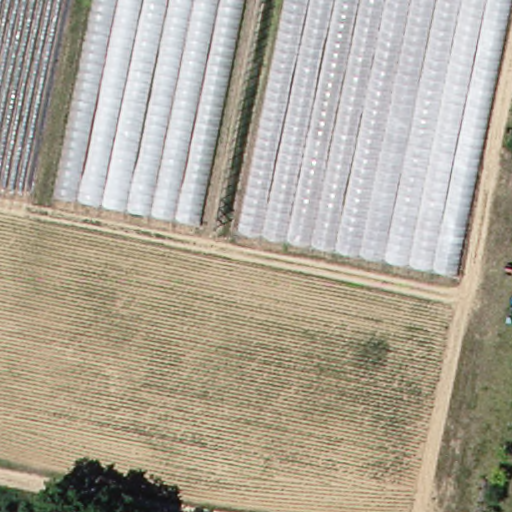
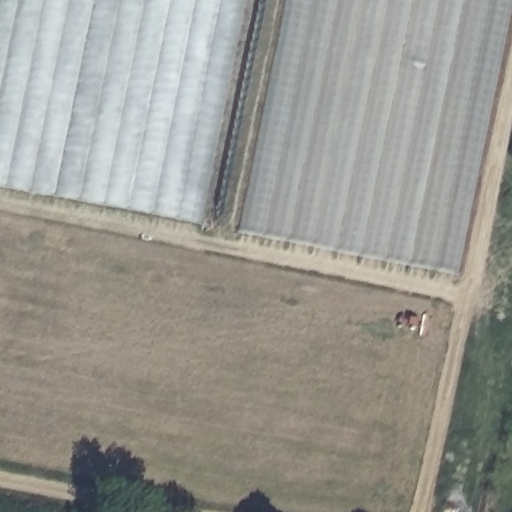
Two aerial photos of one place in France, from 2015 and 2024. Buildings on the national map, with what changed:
new [(0,186),(0,0),(96,0),(57,196),(0,186)]
unchanged [(57,196),(96,0),(247,0),(202,227),(57,196)]
unchanged [(243,236),(290,0),(512,0),(512,2),(461,275),(243,236)]

